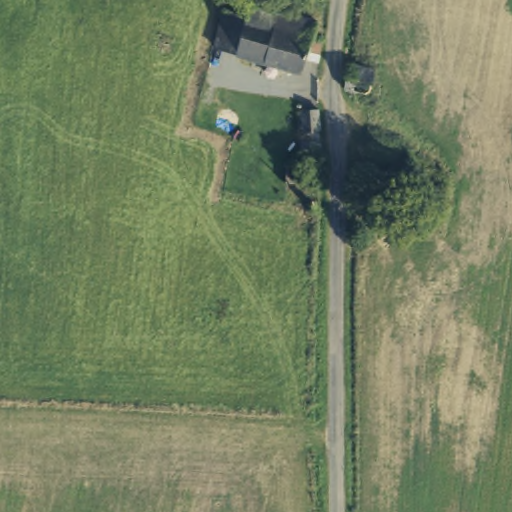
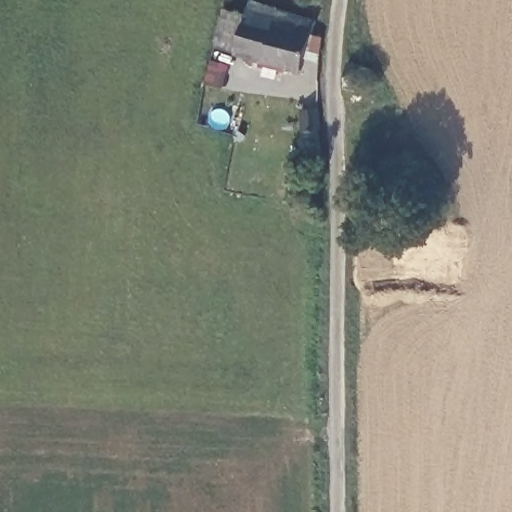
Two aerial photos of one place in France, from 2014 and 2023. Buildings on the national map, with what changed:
unchanged [(230,52),(208,46),(219,9),(241,15),(244,3),(312,20),(309,34),(314,35),(312,60),(300,59),(297,75),(229,55),(230,52)]
unchanged [(372,69),(367,95),(352,92),(341,90),(346,62),(354,65),(372,69)]
unchanged [(299,110),(318,112),(320,164),(300,165),(299,110)]

